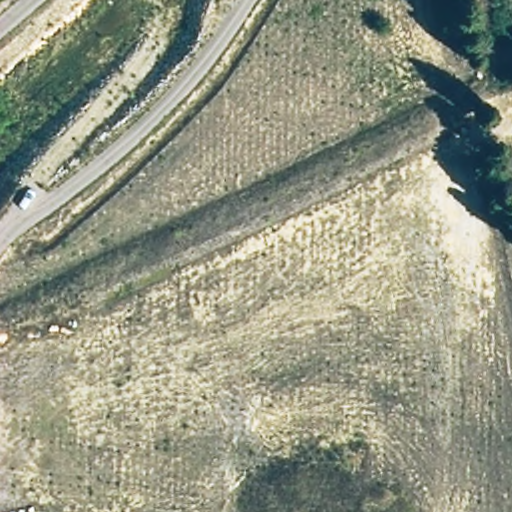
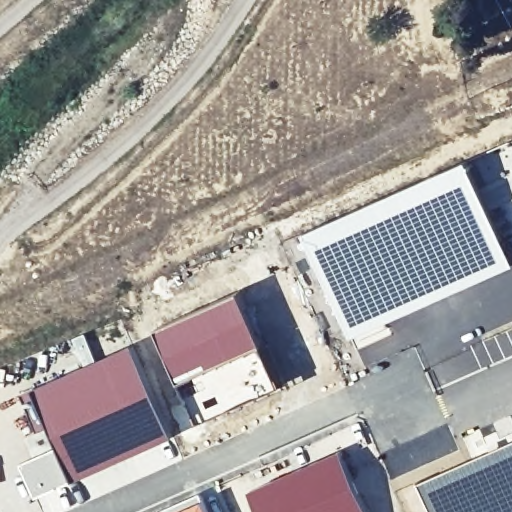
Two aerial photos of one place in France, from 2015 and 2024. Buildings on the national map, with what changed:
new [(512,257),(512,268),(354,341),(306,232),(468,161),(512,257)]
new [(241,289),(264,342),(281,385),(204,420),(182,381),(156,327),(241,289)]
new [(82,364),(70,338),(85,331),(98,358),(133,342),(175,436),(75,482),(55,444),(32,387),(82,364)]
new [(472,456),(464,437),(480,428),(491,446),(512,436),(512,512),(431,512),(417,482),(472,456)]
new [(55,444),(75,482),(35,498),(18,462),(55,444)]
new [(341,451),(368,512),(259,512),(249,492),(341,451)]
new [(200,491),(210,512),(154,512),(200,491)]

